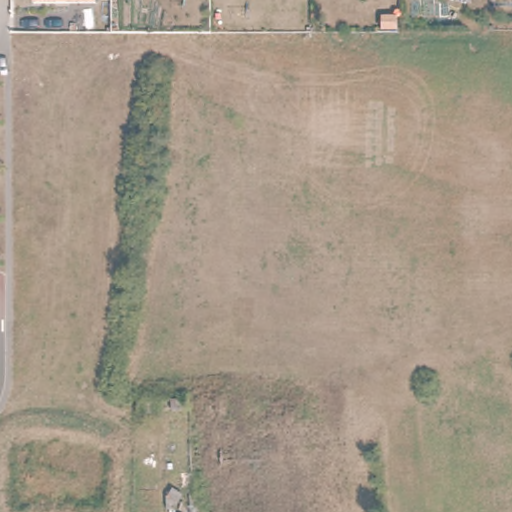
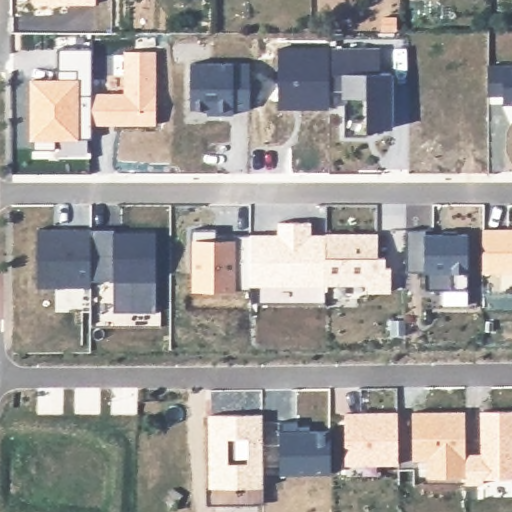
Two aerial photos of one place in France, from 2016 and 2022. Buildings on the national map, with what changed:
unchanged [(32,4),(32,0),(95,0),(95,5),(32,4)]
new [(341,90),(326,89),(325,48),(379,48),(379,72),(392,72),(393,129),(364,128),(365,134),(343,134),(341,90)]
new [(91,94),(124,93),(123,52),(154,51),(155,124),(91,124),(91,94)]
new [(234,108),(233,114),(205,114),(205,109),(190,109),(190,63),(247,62),(250,108),(234,108)]
new [(512,64),(512,103),(501,102),(501,94),(487,94),(487,64),(512,64)]
new [(512,272),(480,271),(481,227),(512,228),(512,272)]
new [(36,230),(90,229),(90,280),(90,288),(36,288),(36,230)]
new [(113,229),(113,233),(155,233),(155,312),(113,312),(113,280),(90,280),(90,229),(106,229),(113,229)]
new [(190,229),(216,229),(216,235),(250,234),(250,289),(194,289),(194,272),(190,272),(190,229)]
new [(405,229),(425,229),(425,233),(467,233),(468,288),(424,288),(424,271),(405,271),(405,229)]
new [(320,232),(380,232),(380,292),(320,292),(320,232)]
demolished [(173,412),(172,401),(188,400),(188,410),(173,412)]
demolished [(160,412),(137,415),(137,403),(160,402),(160,412)]
new [(262,411),(263,487),(262,504),(205,504),(207,485),(208,412),(262,411)]
new [(396,411),(396,464),(344,464),(343,411),(396,411)]
new [(465,411),(466,453),(466,476),(429,476),(428,459),(422,459),(422,453),(413,454),(413,412),(465,411)]
new [(482,411),(512,411),(512,477),(483,477),(483,482),(466,483),(466,476),(466,453),(483,453),(482,411)]
new [(278,430),(328,430),(329,473),(279,473),(278,430)]

